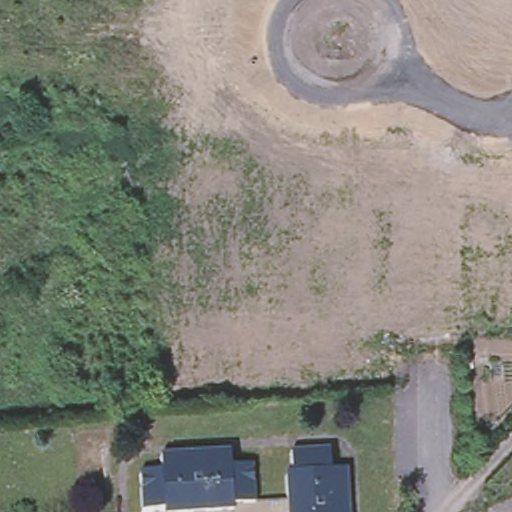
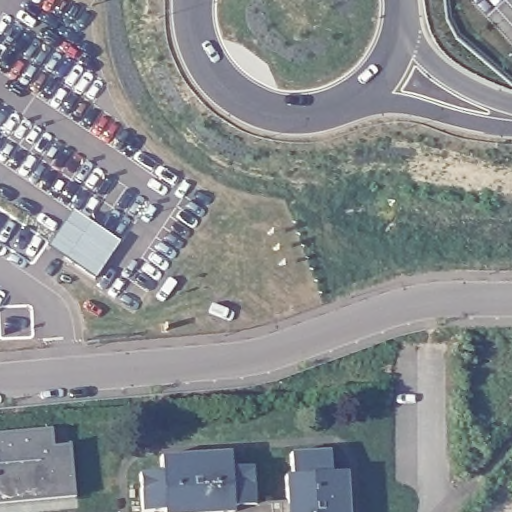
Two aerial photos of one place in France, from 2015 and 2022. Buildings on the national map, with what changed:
new [(71,210),(118,241),(94,278),(48,247),(71,210)]
new [(53,447),(69,445),(74,497),(0,504),(0,433),(51,428),(53,447)]
unchanged [(230,454),(231,469),(239,469),(241,512),(206,512),(204,456),(230,454)]
unchanged [(330,454),(331,475),(347,474),(348,512),(308,512),(306,455),(330,454)]
unchanged [(253,469),(254,503),(286,502),(286,477),(292,476),(291,456),(306,455),(308,512),(241,512),(239,469),(253,469)]
unchanged [(204,456),(206,512),(171,512),(168,457),(204,456)]
unchanged [(141,512),(140,474),(161,473),(161,458),(168,457),(171,512),(141,512)]

